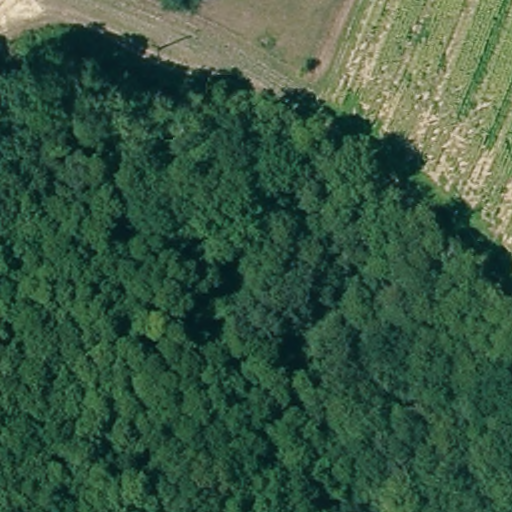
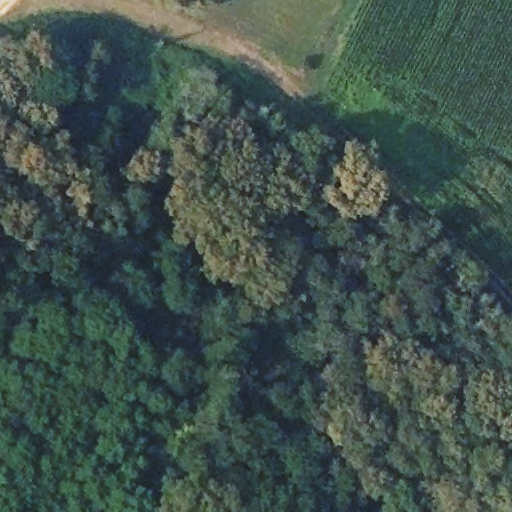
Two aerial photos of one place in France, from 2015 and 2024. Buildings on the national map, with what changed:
[]

